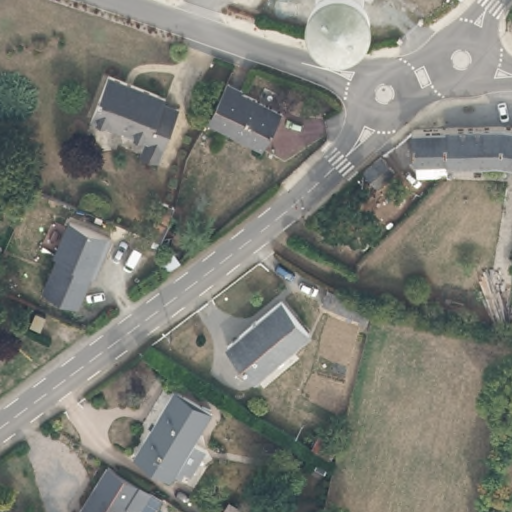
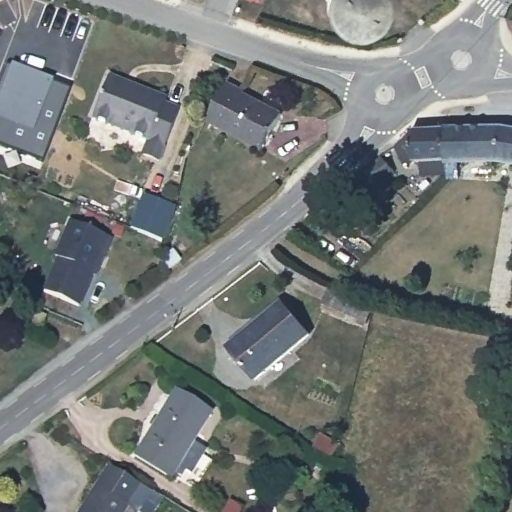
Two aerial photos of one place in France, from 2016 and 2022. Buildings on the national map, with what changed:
new [(11,65),(11,62),(54,79),(53,82),(70,87),(43,161),(0,145),(0,76),(5,62),(11,65)]
unchanged [(144,152),(148,140),(92,121),(109,79),(166,99),(165,104),(177,107),(163,145),(160,157),(144,152)]
unchanged [(240,86),(238,92),(283,107),(273,142),(209,124),(220,80),(240,86)]
unchanged [(424,167),(424,159),(398,159),(393,144),(412,127),(446,126),(501,122),(512,124),(512,157),(503,156),(447,160),(447,167),(441,167),(424,167)]
unchanged [(377,185),(364,169),(383,153),(396,168),(377,185)]
unchanged [(155,197),(169,201),(161,228),(147,222),(155,197)]
unchanged [(108,229),(101,247),(98,245),(79,298),(44,285),(56,252),(53,250),(66,214),(108,229)]
unchanged [(0,259),(0,253),(2,254),(0,259)]
unchanged [(367,317),(323,297),(330,283),(373,302),(367,317)]
unchanged [(258,378),(229,346),(283,301),(311,332),(258,378)]
unchanged [(200,447),(184,472),(172,465),(165,475),(131,453),(171,387),(206,409),(188,440),(200,447)]
unchanged [(106,458),(147,482),(135,503),(124,497),(125,496),(95,478),(106,458)]
unchanged [(115,512),(74,512),(95,478),(125,496),(124,497),(115,512)]

